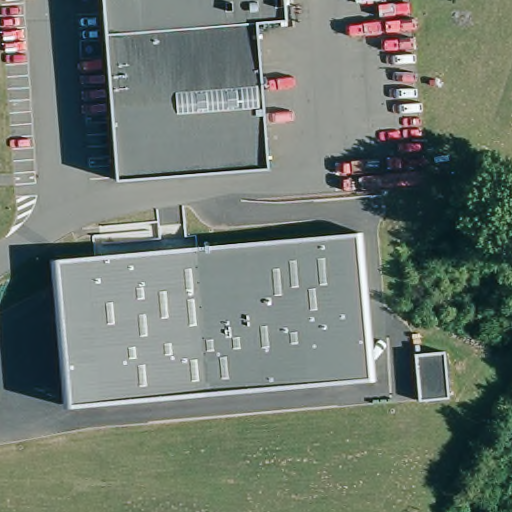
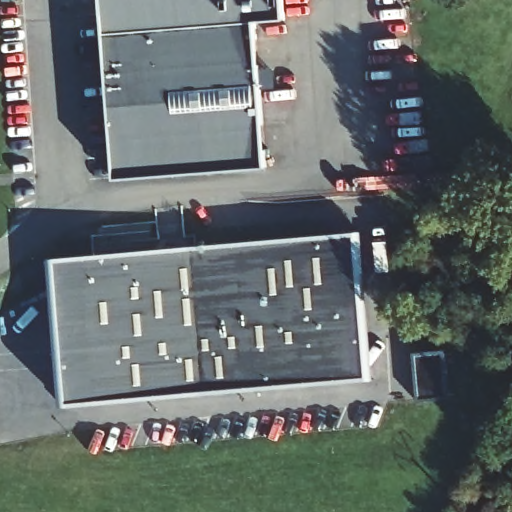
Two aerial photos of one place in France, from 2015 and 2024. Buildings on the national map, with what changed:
unchanged [(258,25),(269,172),(117,182),(104,0),(285,0),(287,22),(258,25)]
unchanged [(362,232),(373,378),(67,407),(55,260),(362,232)]
unchanged [(445,351),(449,397),(419,401),(415,354),(445,351)]

